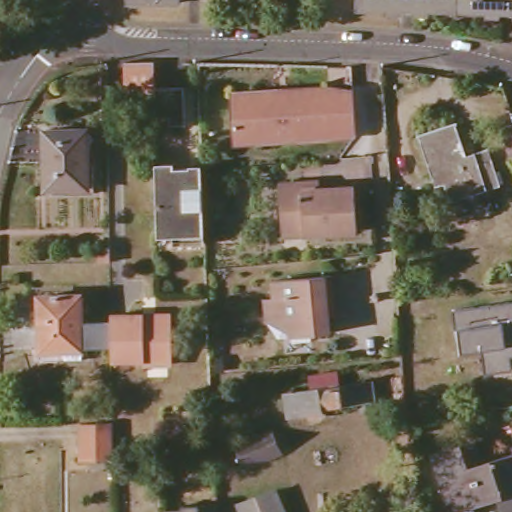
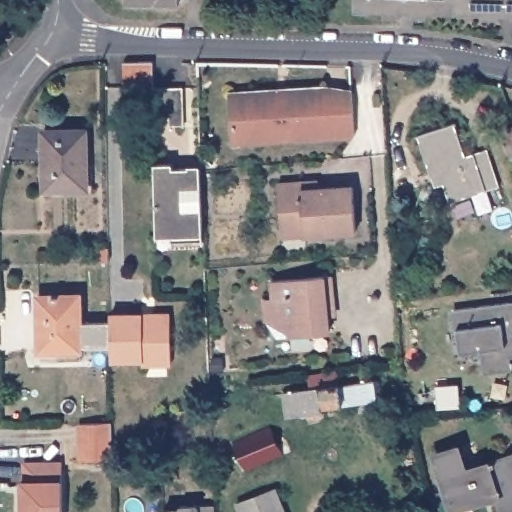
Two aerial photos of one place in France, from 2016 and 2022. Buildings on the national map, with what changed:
unchanged [(356,6),(357,0),(512,0),(512,10),(356,6)]
unchanged [(155,61),(155,82),(140,82),(141,91),(123,90),(122,61),(155,61)]
unchanged [(187,126),(171,126),(171,120),(155,120),(155,89),(185,87),(187,126)]
unchanged [(328,140),(264,145),(263,132),(233,135),(231,92),(280,89),(280,95),(353,90),(355,129),(356,137),(328,140)]
unchanged [(466,157),(489,150),(500,186),(450,203),(440,175),(433,177),(420,136),(456,125),(466,157)]
unchanged [(500,130),(512,127),(512,162),(500,130)]
unchanged [(86,190),(44,191),(43,132),(85,132),(86,190)]
unchanged [(175,168),(201,166),(201,170),(204,240),(171,241),(171,232),(158,232),(157,164),(174,164),(175,168)]
unchanged [(304,189),(319,187),(354,186),(356,230),(303,233),(303,222),(282,223),(280,183),(303,181),(304,189)]
unchanged [(338,288),(331,289),(333,310),(335,327),(282,332),(272,317),(270,293),(278,293),(276,275),(336,270),(338,288)]
unchanged [(82,319),(110,318),(110,344),(82,344),(82,346),(40,347),(40,291),(83,291),(82,319)]
unchanged [(483,351),(458,355),(455,329),(455,310),(512,303),(512,372),(486,376),(483,351)]
unchanged [(141,311),(142,315),(147,314),(151,310),(161,310),(169,310),(170,359),(162,359),(142,360),(142,356),(110,356),(110,344),(110,318),(110,311),(141,311)]
unchanged [(221,358),(223,370),(211,371),(210,360),(221,358)]
unchanged [(375,399),(323,406),(324,411),(290,416),(286,390),(372,378),(375,399)]
unchanged [(117,460),(84,461),(83,422),(116,421),(117,460)]
unchanged [(282,458),(244,473),(233,445),(271,430),(282,458)]
unchanged [(471,468),(512,455),(512,512),(511,512),(503,491),(457,505),(453,491),(450,481),(440,451),(463,444),(471,468)]
new [(61,460),(61,479),(62,512),(21,512),(20,480),(22,461),(61,460)]
unchanged [(285,512),(242,512),(239,503),(277,490),(285,512)]
unchanged [(215,512),(180,512),(180,507),(215,506),(215,512)]

